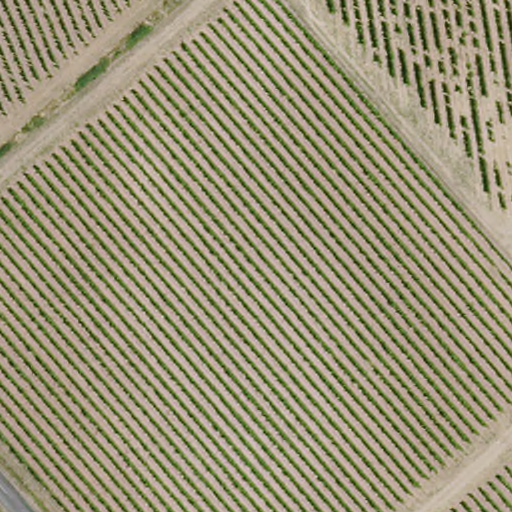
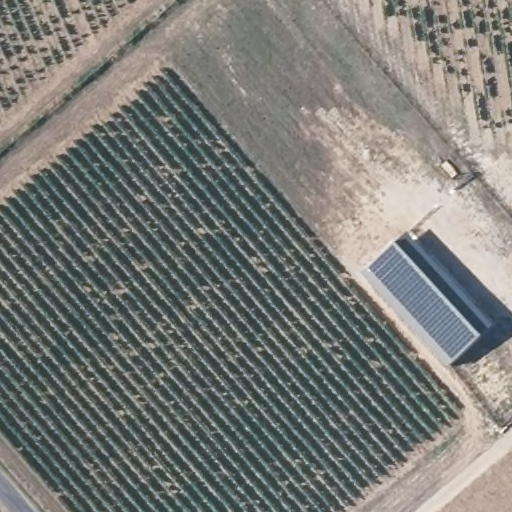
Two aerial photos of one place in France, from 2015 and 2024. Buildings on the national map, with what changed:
new [(398,240),(409,252),(485,335),(447,367),(359,272),(398,240)]

